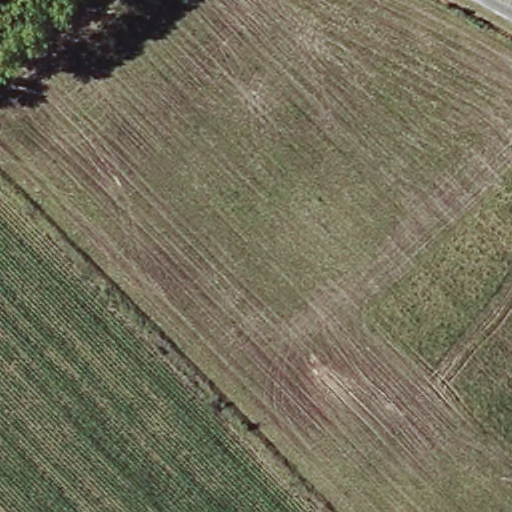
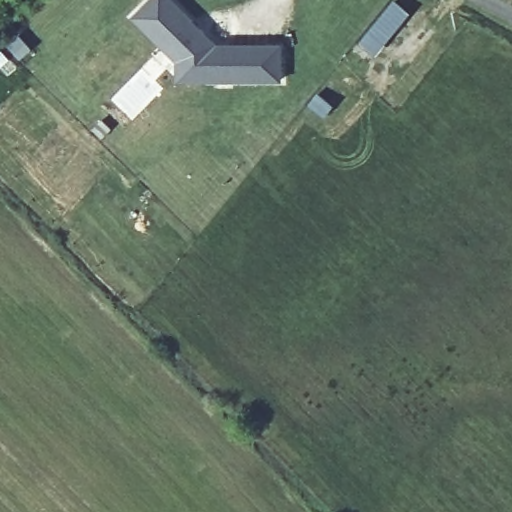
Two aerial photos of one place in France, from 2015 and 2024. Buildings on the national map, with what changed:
new [(134,16),(150,0),(172,0),(193,21),(200,28),(215,45),(229,45),(229,79),(195,79),(178,79),(178,59),(134,16)]
new [(280,80),(260,79),(229,79),(229,45),(260,45),(280,45),(280,80)]

